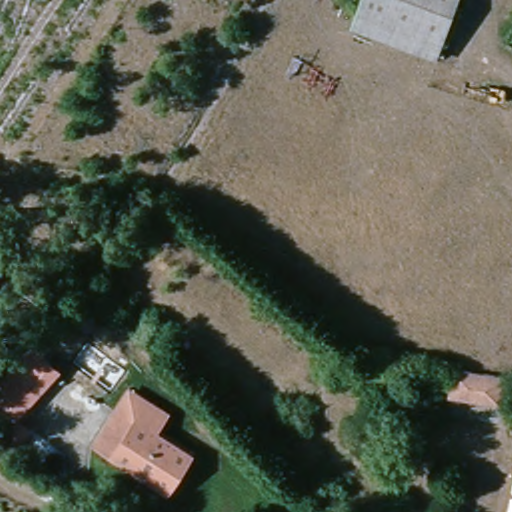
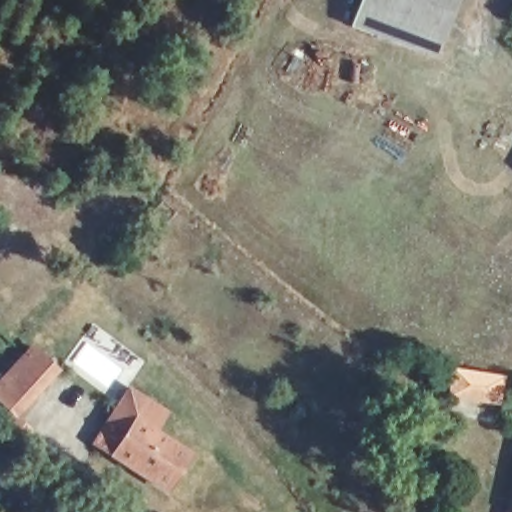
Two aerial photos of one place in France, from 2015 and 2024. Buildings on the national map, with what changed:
unchanged [(433,50),(357,8),(362,0),(460,0),(433,50)]
unchanged [(427,62),(350,22),(357,8),(433,50),(427,62)]
unchanged [(0,400),(0,391),(39,354),(60,376),(17,417),(0,400)]
unchanged [(453,372),(503,374),(501,406),(452,404),(453,372)]
unchanged [(119,433),(137,404),(147,410),(172,425),(165,438),(200,460),(172,502),(104,457),(119,433)]
unchanged [(512,485),(512,512),(506,512),(507,506),(512,485)]

